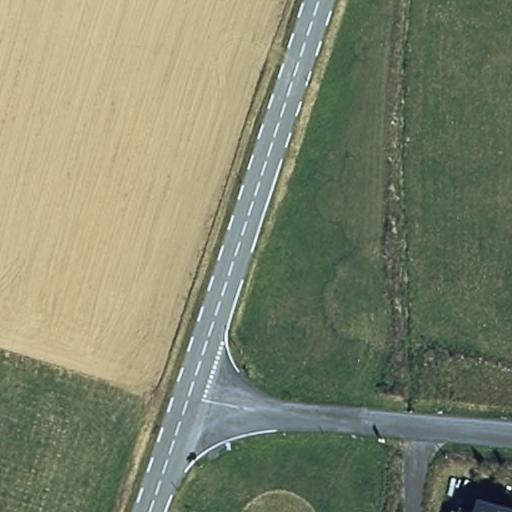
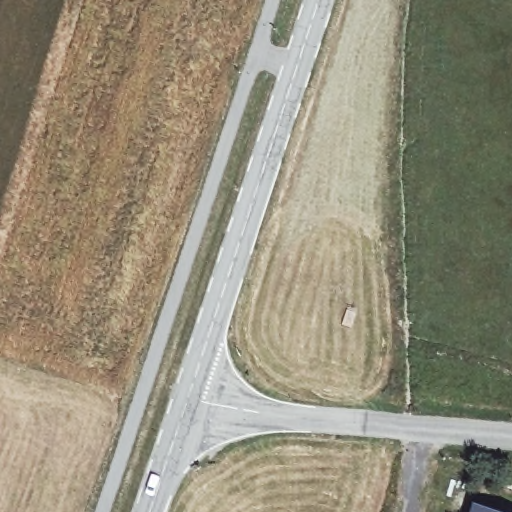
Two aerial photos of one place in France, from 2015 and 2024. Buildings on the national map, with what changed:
unchanged [(512,507),(512,512),(469,512),(474,495),(512,507)]

